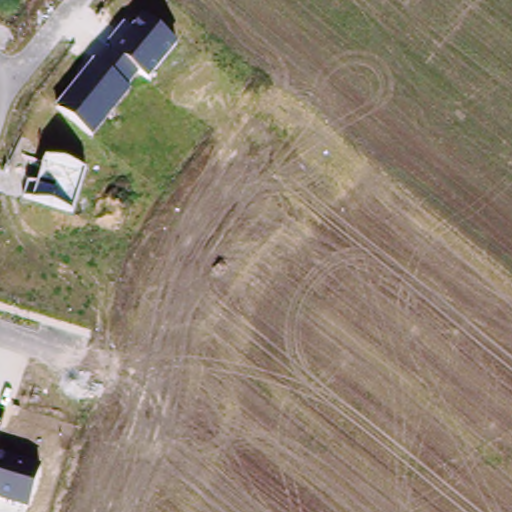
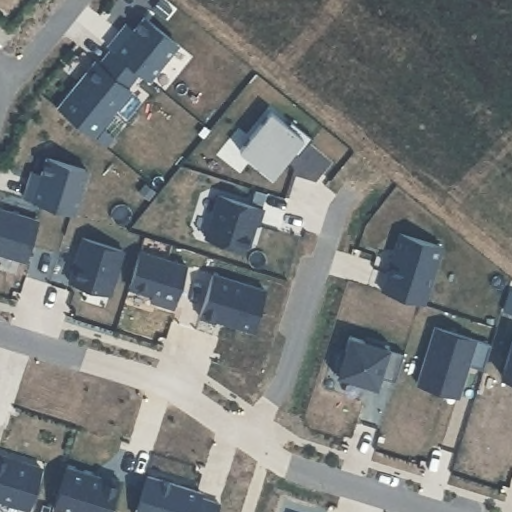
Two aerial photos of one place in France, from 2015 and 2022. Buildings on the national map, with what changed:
unchanged [(54,109),(136,12),(177,46),(149,79),(140,72),(128,87),(132,91),(91,137),(54,109)]
new [(270,115),(287,128),(290,124),(311,141),(297,158),(291,153),(271,179),(239,154),(270,115)]
unchanged [(25,182),(37,184),(45,157),(87,169),(75,212),(22,198),(25,182)]
new [(218,197),(262,210),(257,226),(255,225),(248,247),(242,251),(205,240),(218,197)]
new [(25,263),(0,255),(0,211),(37,222),(25,263)]
new [(399,236),(440,249),(423,306),(381,293),(399,236)]
new [(109,296),(68,283),(81,240),(123,252),(109,296)]
new [(186,267),(173,309),(149,302),(151,296),(128,290),(139,252),(186,267)]
new [(264,292),(251,332),(215,321),(215,323),(199,318),(212,276),(264,292)]
new [(490,346),(483,371),(467,366),(457,398),(417,386),(434,328),(490,346)]
new [(366,386),(332,375),(340,351),(345,352),(349,338),(364,343),(366,338),(388,345),(387,350),(404,355),(395,384),(378,378),(376,385),(375,388),(366,386)]
new [(512,344),(512,381),(501,378),(512,344)]
unchanged [(27,511),(0,502),(0,455),(41,468),(27,511)]
new [(102,477),(118,482),(109,512),(63,512),(53,509),(65,468),(101,480),(102,477)]
new [(201,495),(199,500),(219,506),(218,512),(148,512),(157,481),(201,495)]

